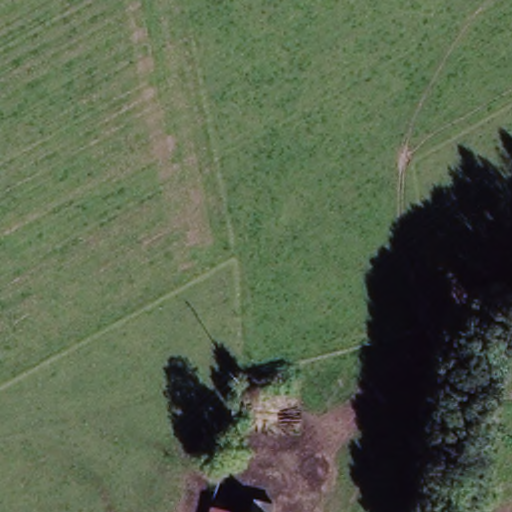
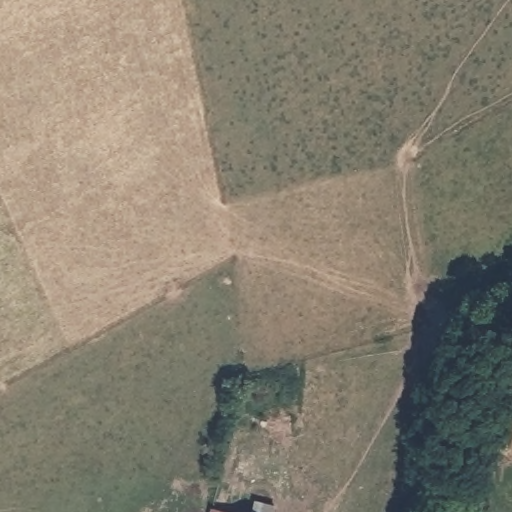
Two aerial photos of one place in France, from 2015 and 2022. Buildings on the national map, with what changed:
unchanged [(269,501),(267,512),(246,512),(250,497),(269,501)]
unchanged [(235,511),(235,510),(244,512),(207,512),(208,505),(235,511)]

